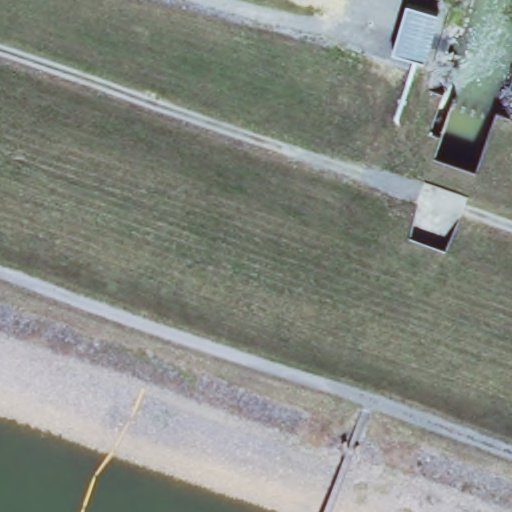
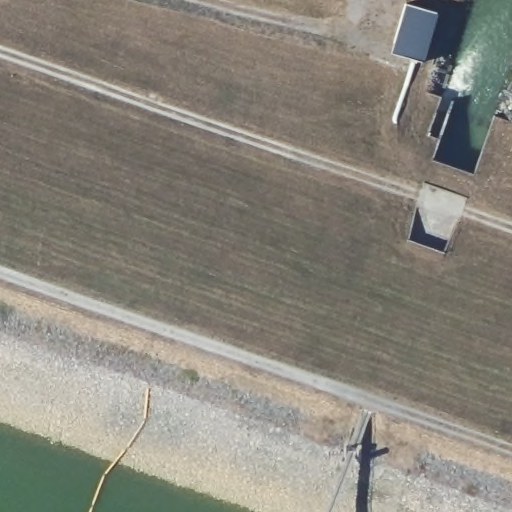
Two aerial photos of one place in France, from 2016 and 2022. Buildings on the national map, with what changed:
unchanged [(438,13),(425,65),(391,56),(405,4),(438,13)]

